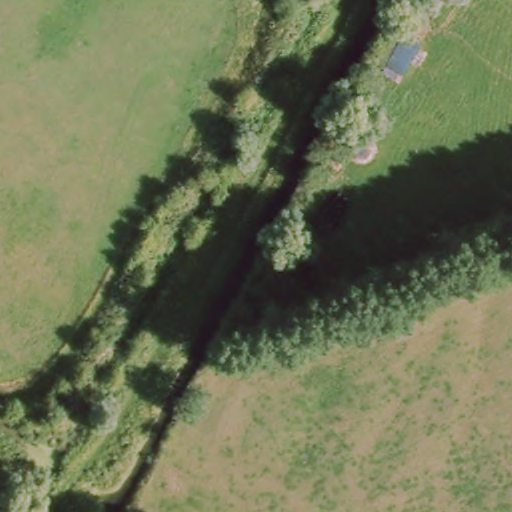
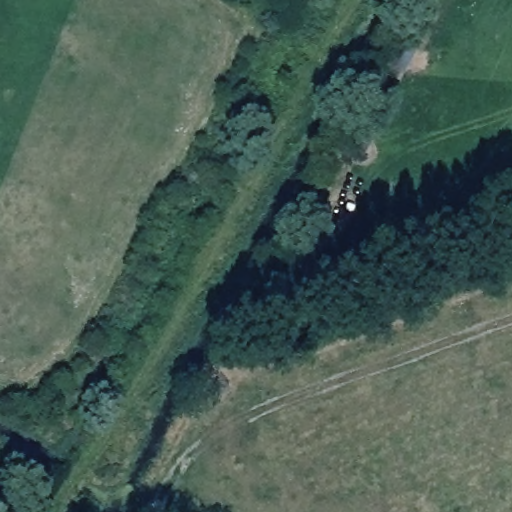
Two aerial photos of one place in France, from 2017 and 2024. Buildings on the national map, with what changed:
unchanged [(421,47),(406,75),(387,63),(404,36),(421,47)]

